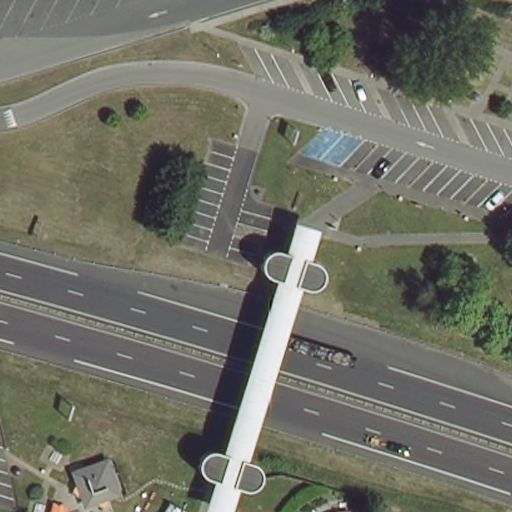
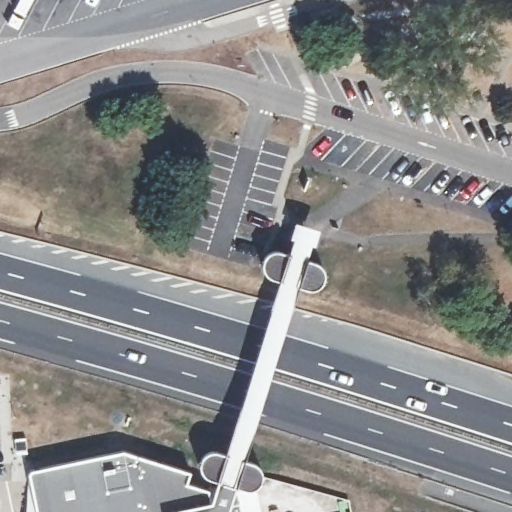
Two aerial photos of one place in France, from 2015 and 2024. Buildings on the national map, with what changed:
unchanged [(321,229),(313,261),(326,269),(327,277),(322,282),(312,283),(306,282),(248,455),(261,462),(266,469),(263,483),(255,487),(241,486),(237,486),(231,512),(214,512),(209,510),(216,480),(206,473),(201,466),(203,459),(210,454),(219,452),(276,275),(267,268),(266,263),(268,254),(275,249),(283,250),(298,220),(321,229)]
new [(209,510),(214,512),(36,512),(28,474),(28,472),(123,450),(189,472),(187,483),(213,493),(209,510)]
demolished [(75,468),(110,452),(123,493),(91,504),(75,468)]
new [(237,486),(241,486),(255,487),(263,483),(264,474),(347,499),(350,512),(231,512),(237,486)]
demolished [(311,511),(342,499),(345,512),(310,512),(311,511)]

